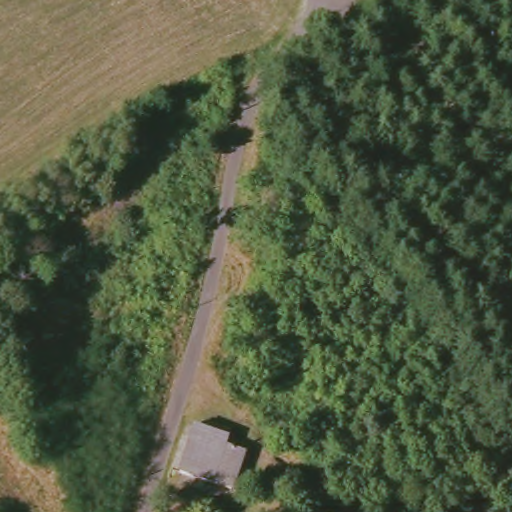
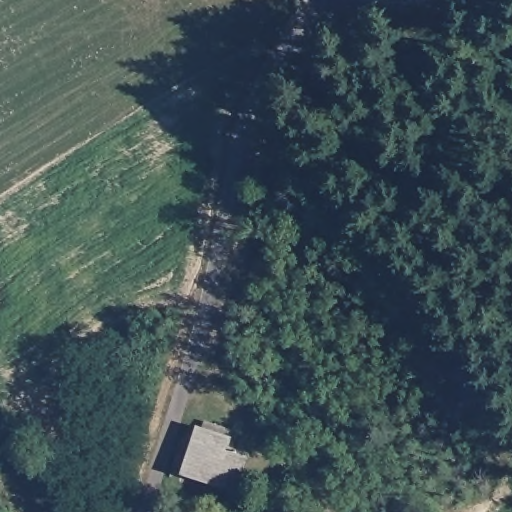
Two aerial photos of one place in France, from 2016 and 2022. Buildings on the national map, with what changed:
unchanged [(229,436),(227,448),(242,451),(233,488),(181,473),(191,429),(229,436)]

